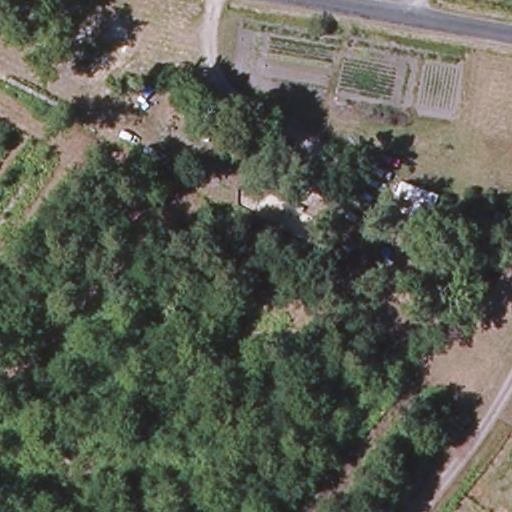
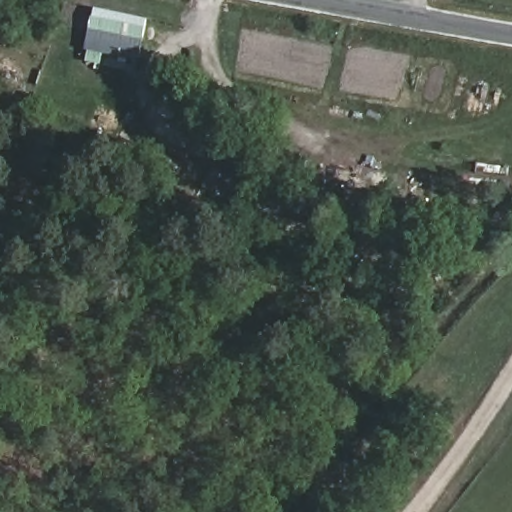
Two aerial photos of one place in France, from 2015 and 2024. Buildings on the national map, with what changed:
new [(146,20),(138,62),(103,55),(101,66),(84,62),(94,10),(146,20)]
unchanged [(430,221),(394,210),(405,183),(440,195),(430,221)]

